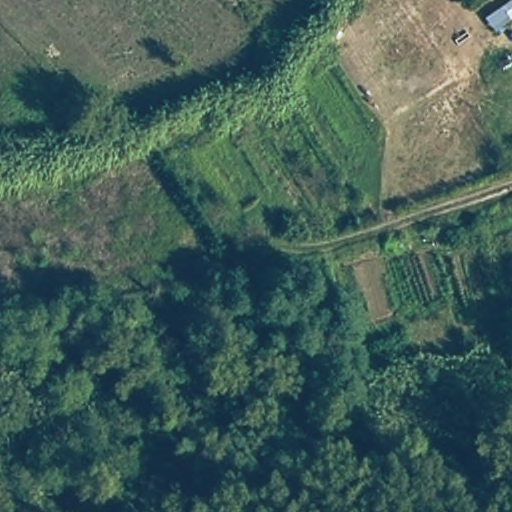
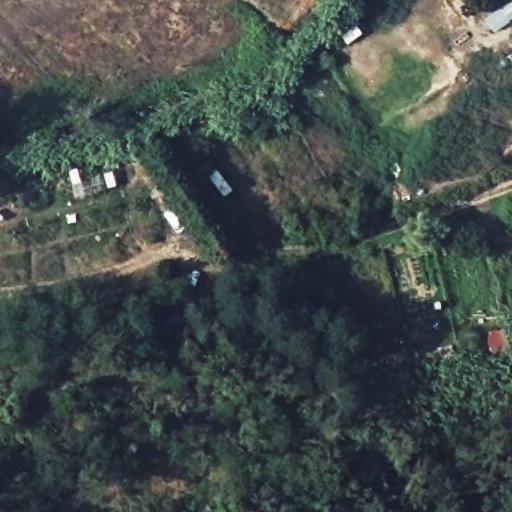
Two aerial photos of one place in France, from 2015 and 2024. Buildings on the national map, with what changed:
unchanged [(499,30),(488,16),(508,0),(509,0),(512,4),(512,21),(499,30)]

